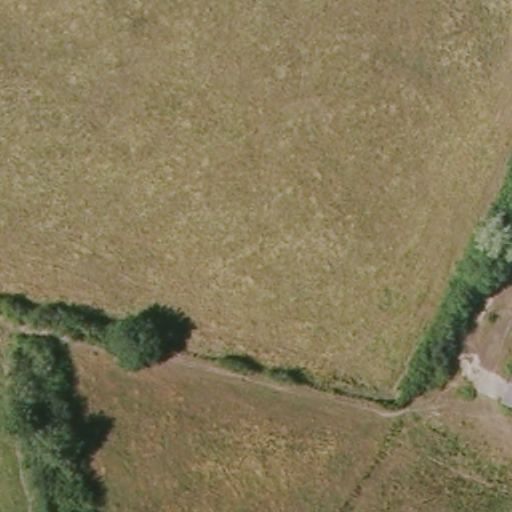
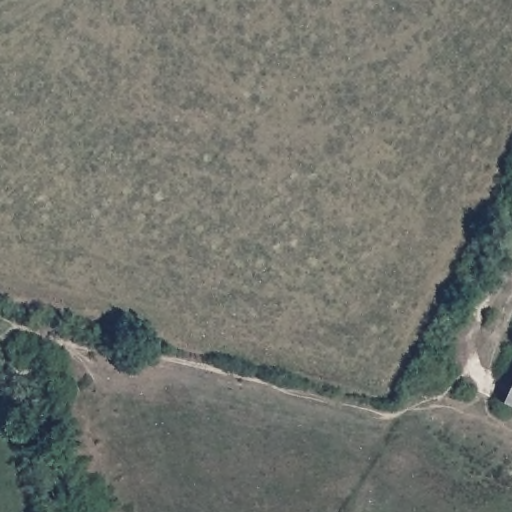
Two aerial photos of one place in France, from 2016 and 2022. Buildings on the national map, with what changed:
unchanged [(512,395),(512,400),(510,400),(512,395)]

